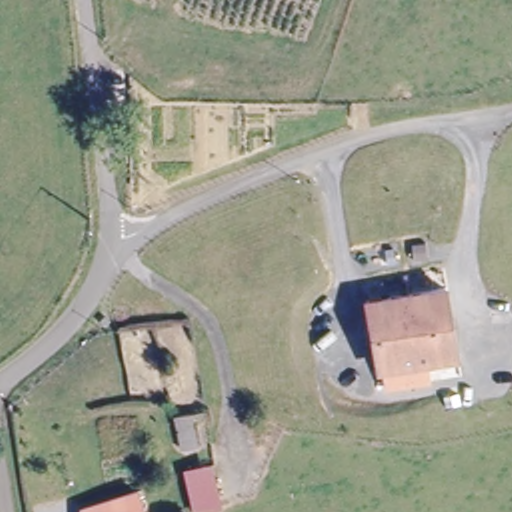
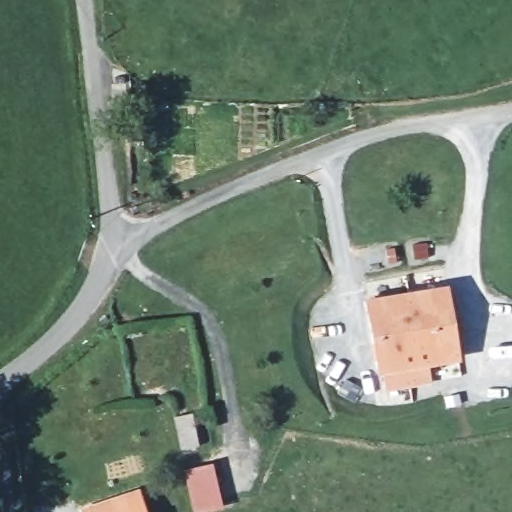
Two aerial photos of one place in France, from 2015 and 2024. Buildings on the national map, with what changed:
unchanged [(447,289),(459,357),(432,361),(435,381),(391,389),(387,369),(386,369),(373,302),(447,289)]
unchanged [(190,415),(197,446),(182,450),(175,419),(190,415)]
unchanged [(193,512),(185,471),(211,465),(220,506),(196,512),(193,512)]
unchanged [(150,512),(97,512),(145,496),(150,512)]

